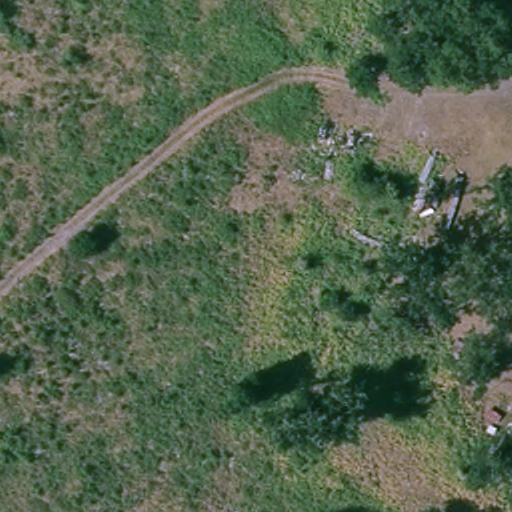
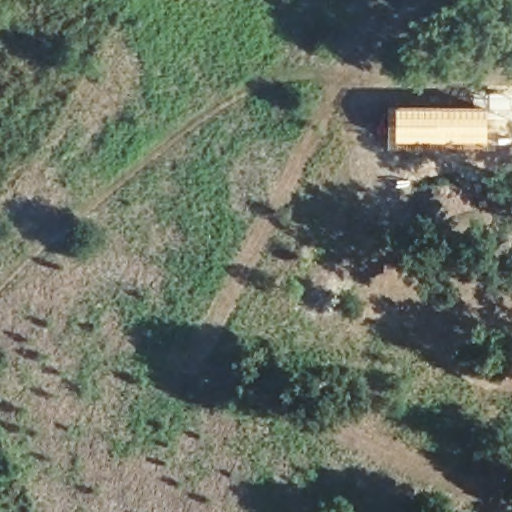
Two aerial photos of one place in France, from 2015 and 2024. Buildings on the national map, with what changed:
new [(388,104),(487,106),(487,142),(387,144),(388,104)]

